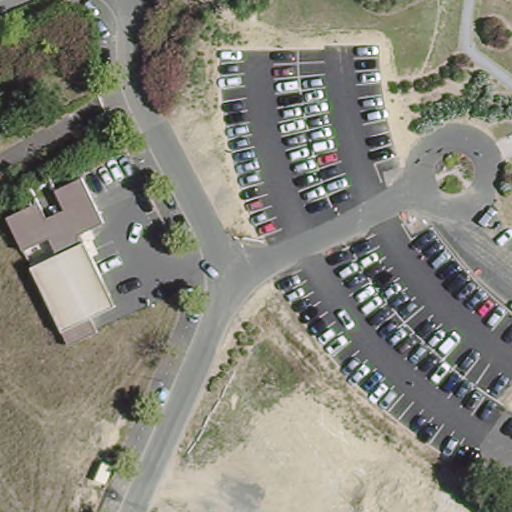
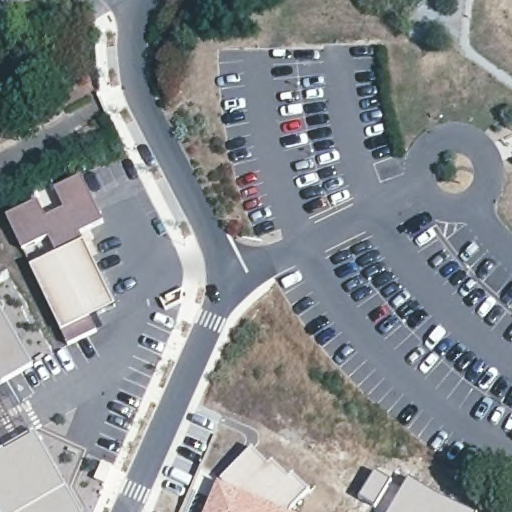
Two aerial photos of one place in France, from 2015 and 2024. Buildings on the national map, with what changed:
unchanged [(104,224),(81,234),(85,242),(79,244),(56,254),(48,238),(21,252),(5,218),(39,202),(47,219),(64,210),(55,190),(83,177),(104,224)]
unchanged [(79,244),(111,312),(60,335),(26,268),(79,244)]
new [(0,385),(0,306),(35,366),(0,385)]
new [(34,429),(85,512),(0,512),(0,449),(34,429)]
new [(294,508),(292,512),(209,512),(214,499),(224,504),(234,494),(223,481),(253,449),(269,467),(274,463),(289,479),(294,476),(309,491),(294,508)]
new [(375,471),(392,482),(374,509),(357,498),(375,471)]
new [(423,489),(439,499),(468,512),(392,512),(410,482),(423,489)]

